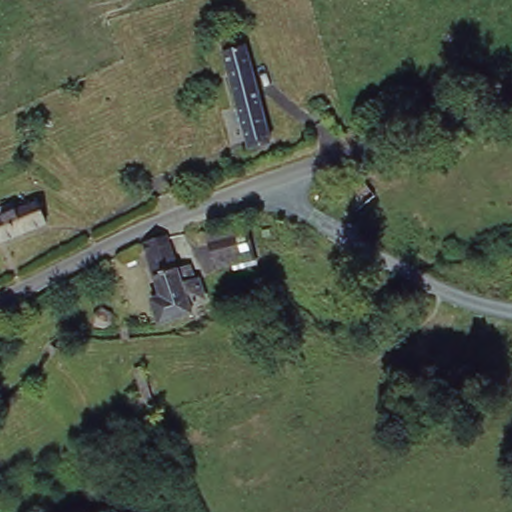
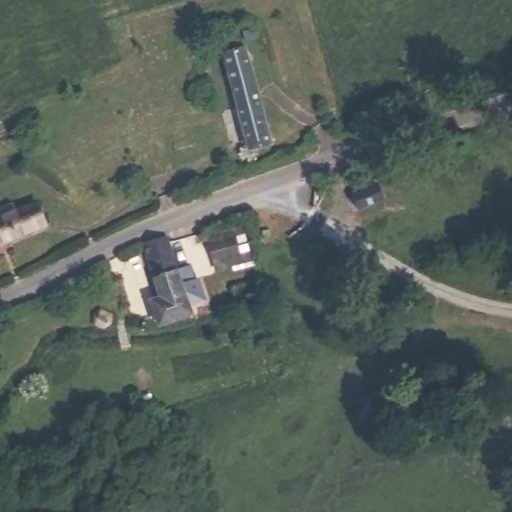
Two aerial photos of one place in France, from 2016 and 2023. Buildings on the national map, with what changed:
unchanged [(261,148),(249,119),(219,46),(244,36),(274,109),(287,139),(261,148)]
unchanged [(375,197),(356,213),(345,200),(362,181),(375,197)]
unchanged [(16,208),(37,198),(49,225),(0,245),(0,206),(14,199),(16,208)]
unchanged [(249,228),(262,257),(242,262),(238,251),(224,254),(218,240),(249,228)]
unchanged [(154,303),(163,300),(140,242),(161,232),(175,266),(186,266),(193,282),(200,280),(203,294),(207,304),(181,314),(179,306),(167,312),(160,316),(154,303)]

